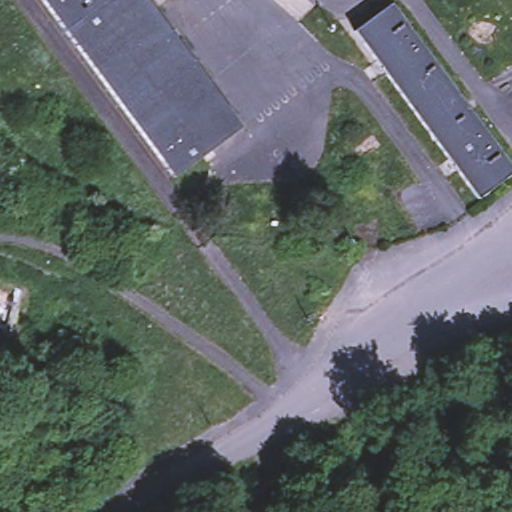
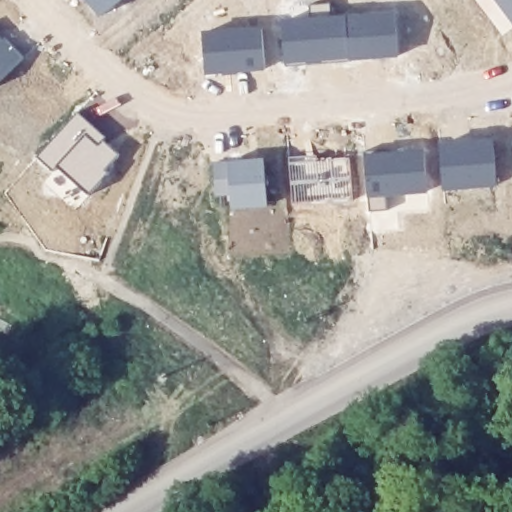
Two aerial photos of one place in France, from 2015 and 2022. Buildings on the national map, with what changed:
demolished [(173,175),(40,0),(145,0),(237,124),(173,175)]
new [(85,0),(120,0),(99,16),(85,0)]
new [(512,0),(512,23),(494,0),(512,0)]
demolished [(512,171),(475,197),(355,32),(389,6),(512,169),(512,171)]
new [(395,13),(399,57),(285,66),(281,20),(395,13)]
new [(262,29),(265,72),(204,74),(202,33),(262,29)]
new [(24,58),(0,81),(0,35),(24,58)]
new [(106,139),(105,141),(120,154),(106,171),(110,173),(91,195),(59,165),(56,172),(38,157),(77,113),(106,139)]
new [(494,143),(496,188),(442,190),(440,145),(494,143)]
new [(424,154),(425,196),(385,198),(385,210),(370,213),(364,154),(424,154)]
new [(350,157),(350,196),(292,203),(289,162),(350,157)]
new [(262,161),(265,206),(230,209),(230,195),(214,197),(212,164),(262,161)]

